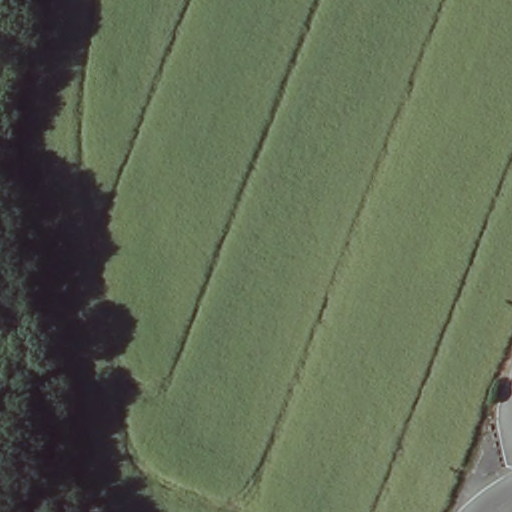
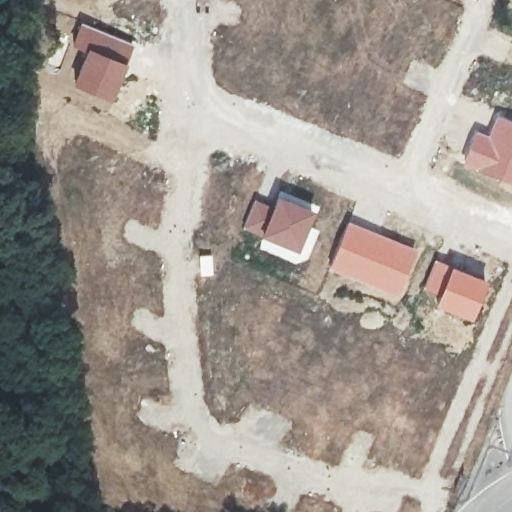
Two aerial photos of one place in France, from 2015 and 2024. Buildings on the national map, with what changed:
new [(81,21),(134,43),(111,98),(72,81),(85,50),(71,45),(81,21)]
new [(476,129),(488,133),(497,114),(512,120),(512,184),(463,165),(476,129)]
new [(255,197),(273,204),(278,192),(315,208),(299,253),(243,227),(255,197)]
new [(348,220),(419,248),(400,297),(329,268),(348,220)]
new [(435,258),(485,277),(471,317),(434,304),(437,296),(423,291),(435,258)]

